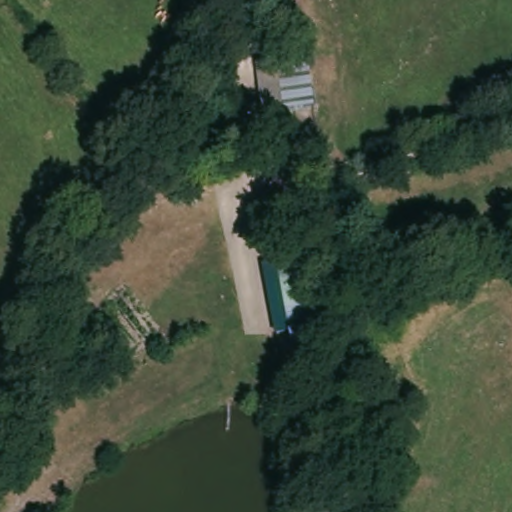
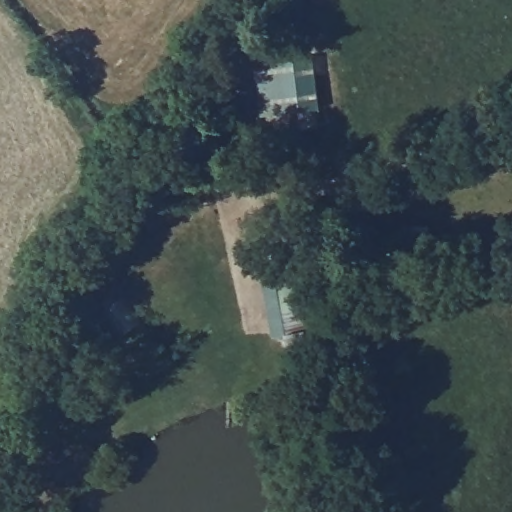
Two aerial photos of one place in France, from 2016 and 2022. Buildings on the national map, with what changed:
unchanged [(311,54),(318,109),(294,112),(296,127),(268,127),(265,109),(262,60),(311,54)]
unchanged [(302,264),(317,350),(289,357),(278,267),(302,264)]

